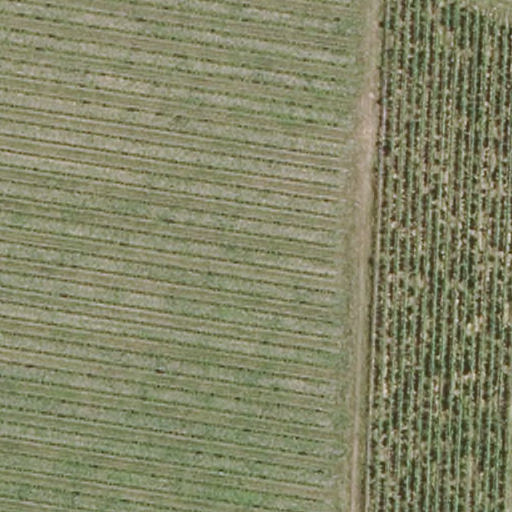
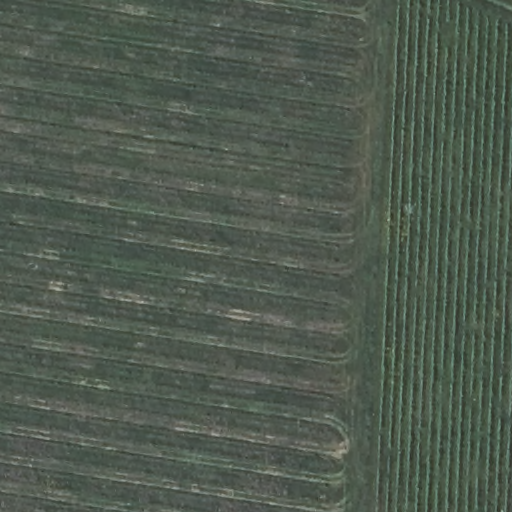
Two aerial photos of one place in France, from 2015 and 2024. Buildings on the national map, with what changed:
[]

